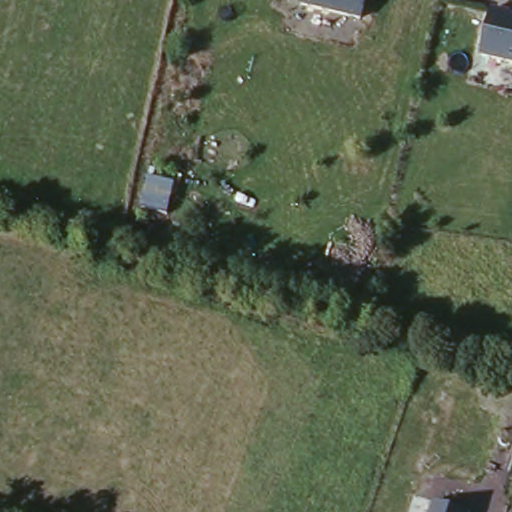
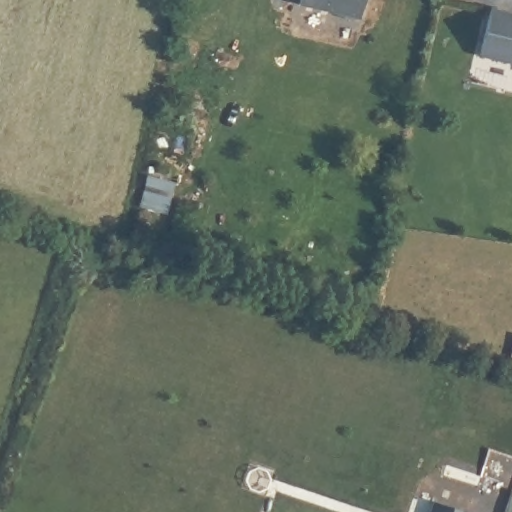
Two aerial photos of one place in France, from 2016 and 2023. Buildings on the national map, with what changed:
unchanged [(359,17),(301,6),(302,0),(363,0),(359,17)]
unchanged [(512,12),(512,64),(482,57),(493,8),(512,12)]
unchanged [(432,512),(434,506),(457,512),(432,512)]

